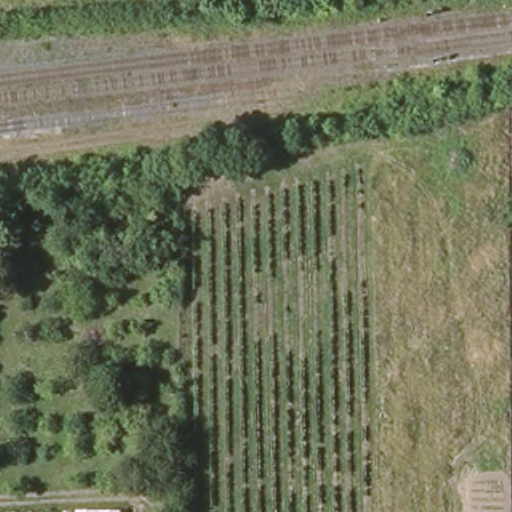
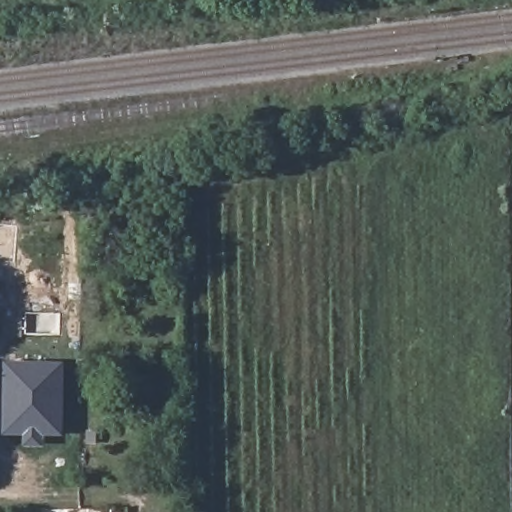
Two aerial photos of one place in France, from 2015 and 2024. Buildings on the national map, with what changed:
new [(5,436),(6,364),(64,362),(63,436),(5,436)]

